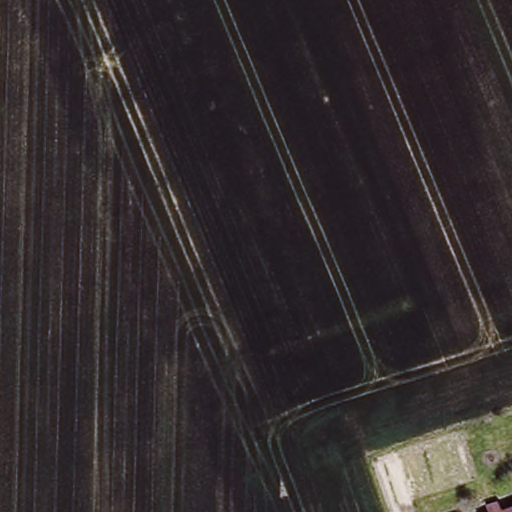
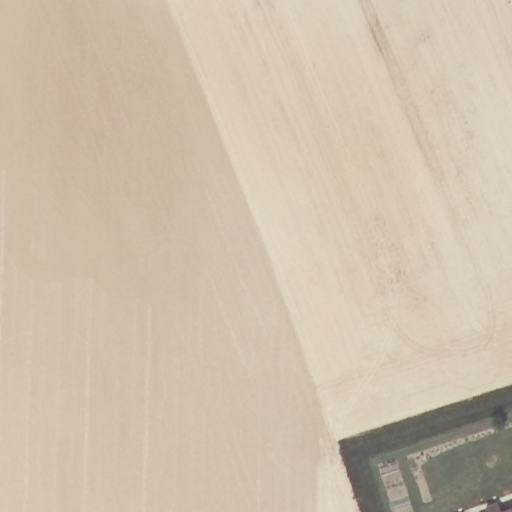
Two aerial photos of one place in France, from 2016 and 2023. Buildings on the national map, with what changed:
unchanged [(497,502),(500,512),(487,512),(486,506),(497,502)]
unchanged [(503,512),(512,509),(512,512),(503,512)]

